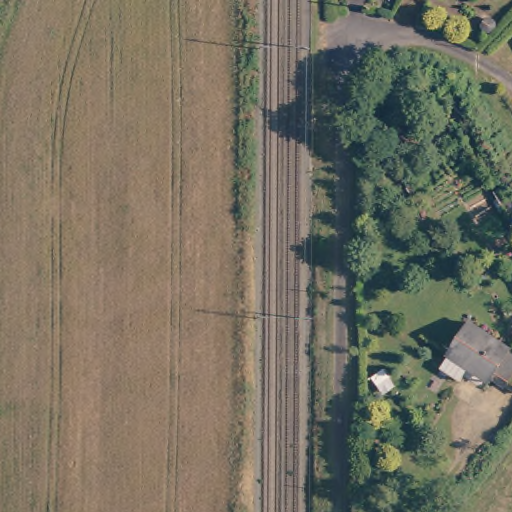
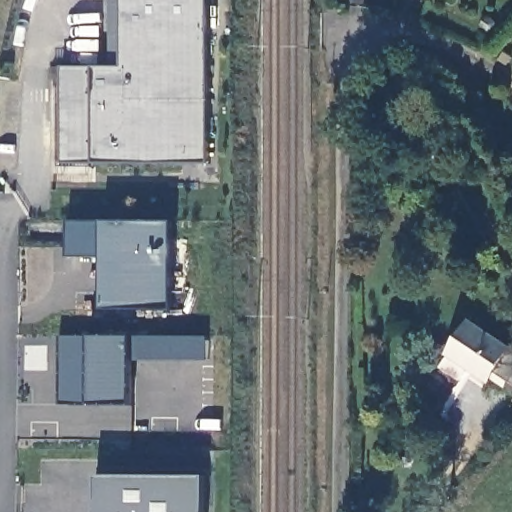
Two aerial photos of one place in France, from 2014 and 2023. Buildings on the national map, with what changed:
new [(64,162),(64,67),(93,67),(115,67),(113,0),(206,0),(208,163),(93,162),(64,162)]
unchanged [(492,19),(493,26),(489,32),(482,32),(479,26),(483,18),(492,19)]
new [(69,220),(175,221),(175,311),(103,310),(103,257),(68,257),(69,220)]
unchanged [(474,322),(512,350),(512,390),(507,386),(506,387),(493,378),(490,383),(471,366),(454,353),(474,322)]
new [(57,337),(130,336),(130,407),(59,407),(57,337)]
new [(209,361),(130,360),(130,336),(210,338),(209,361)]
new [(96,476),(205,477),(205,512),(96,512),(96,476)]

